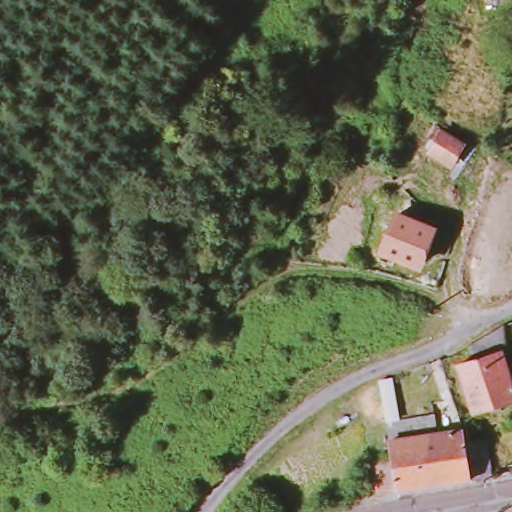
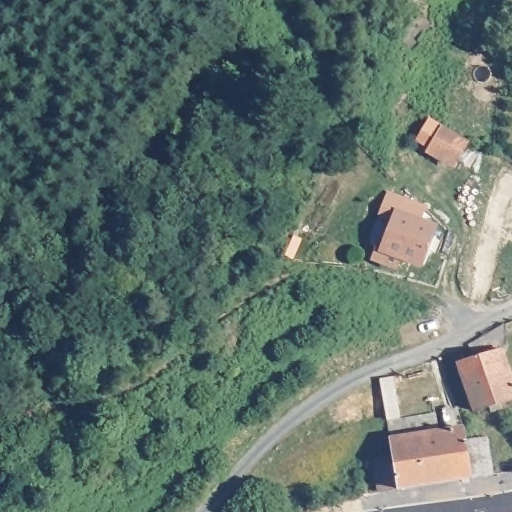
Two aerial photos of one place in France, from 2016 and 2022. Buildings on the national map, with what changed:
unchanged [(447,163),(426,151),(440,129),(460,142),(447,163)]
unchanged [(419,261),(395,253),(392,262),(378,257),(393,211),(430,224),(419,261)]
unchanged [(502,351),(497,354),(512,399),(512,401),(466,417),(452,368),(465,364),(463,353),(475,348),(474,342),(497,329),(502,351)]
unchanged [(389,387),(392,404),(380,407),(376,390),(389,387)]
unchanged [(390,462),(382,425),(430,415),(436,437),(440,436),(437,420),(454,414),(463,450),(483,448),(489,480),(467,483),(397,495),(377,499),(370,466),(390,462)]

